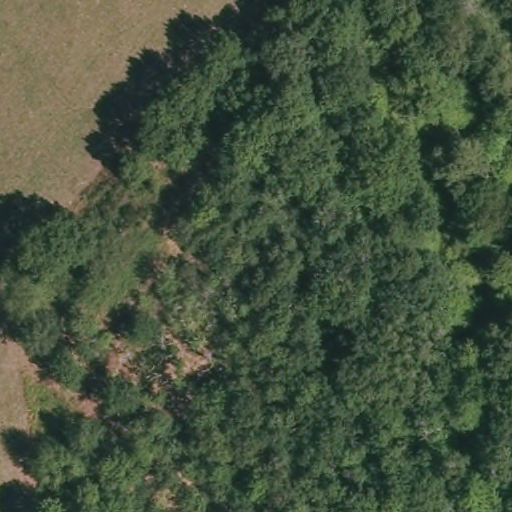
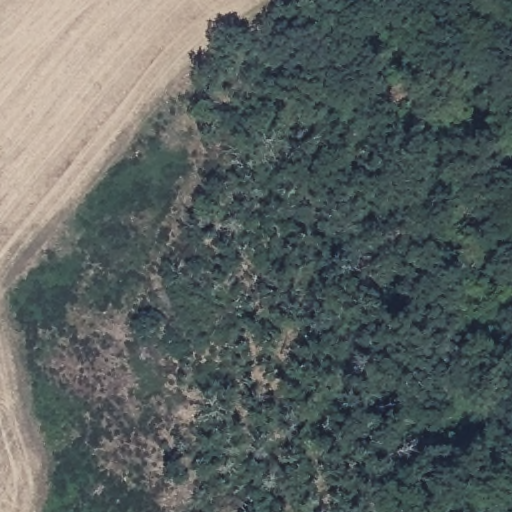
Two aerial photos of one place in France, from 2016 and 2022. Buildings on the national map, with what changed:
[]

